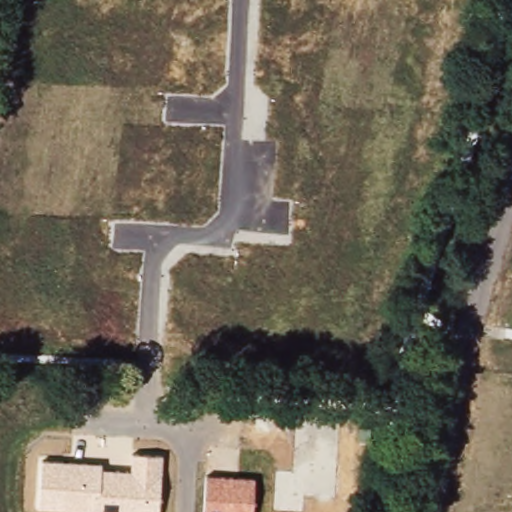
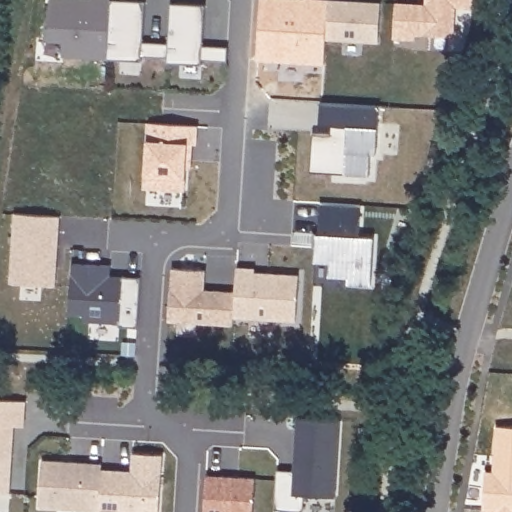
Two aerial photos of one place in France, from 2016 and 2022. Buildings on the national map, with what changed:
new [(110,0),(106,60),(62,57),(62,42),(44,41),(50,0),(110,0)]
new [(110,0),(145,2),(142,43),(167,45),(167,58),(142,57),(141,62),(106,60),(110,0)]
new [(425,6),(425,0),(473,0),(472,9),(455,8),(453,38),(415,36),(415,41),(393,39),(395,4),(425,6)]
new [(328,1),(380,4),(377,44),(325,40),(328,1)]
new [(167,58),(167,45),(170,4),(205,6),(202,47),(227,48),(226,62),(201,61),(201,66),(166,64),(167,58)]
new [(330,136),(330,127),(318,125),(320,103),(379,107),(376,155),(370,154),(369,177),(310,172),(312,135),(330,136)]
new [(197,127),(196,145),(192,145),(191,170),(186,170),(184,192),(144,190),(148,124),(197,127)]
new [(316,235),(318,235),(320,203),(360,206),(358,237),(373,239),(370,286),(347,285),(347,278),(328,277),(329,263),(314,262),(316,235)]
new [(14,214),(59,217),(55,287),(10,284),(14,214)]
new [(71,265),(109,267),(108,286),(121,286),(122,277),(140,278),(137,328),(119,327),(119,324),(83,322),(83,315),(68,315),(71,265)]
new [(234,293),(236,268),(254,270),(254,273),(298,276),(295,322),(233,318),(234,293)]
new [(171,270),(204,272),(203,291),(234,293),(233,318),(232,326),(168,322),(171,270)]
new [(25,402),(23,427),(13,427),(9,494),(0,493),(0,401),(25,402)]
new [(276,471),(293,472),(296,420),(339,422),(334,498),(303,497),(303,512),(295,512),(273,511),(276,471)]
unchanged [(42,459),(100,463),(100,470),(131,472),(133,455),(162,457),(157,512),(98,512),(97,510),(38,507),(42,459)]
unchanged [(204,476),(255,480),(253,512),(203,512),(204,476)]

